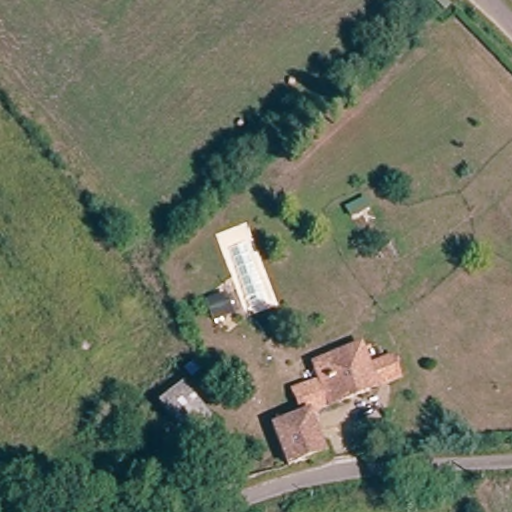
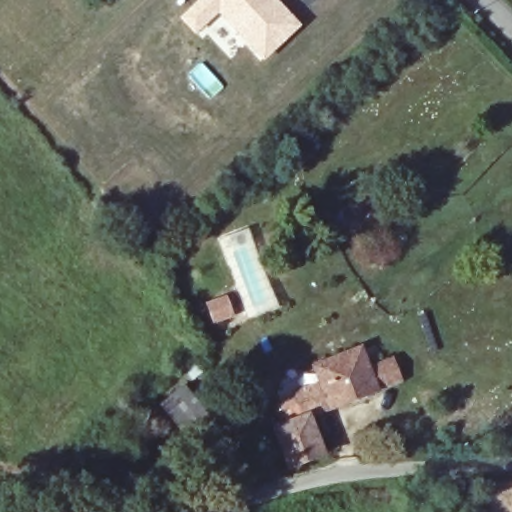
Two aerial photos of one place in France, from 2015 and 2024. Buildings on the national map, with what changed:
new [(197,0),(279,0),(302,25),(263,62),(220,14),(196,35),(179,16),(197,0)]
unchanged [(308,414),(324,455),(289,467),(274,428),(302,416),(293,393),(319,381),(311,365),(364,343),(379,385),(308,414)]
unchanged [(375,357),(388,351),(400,376),(386,382),(375,357)]
unchanged [(212,425),(194,438),(184,435),(160,408),(158,406),(179,390),(186,396),(212,425)]

